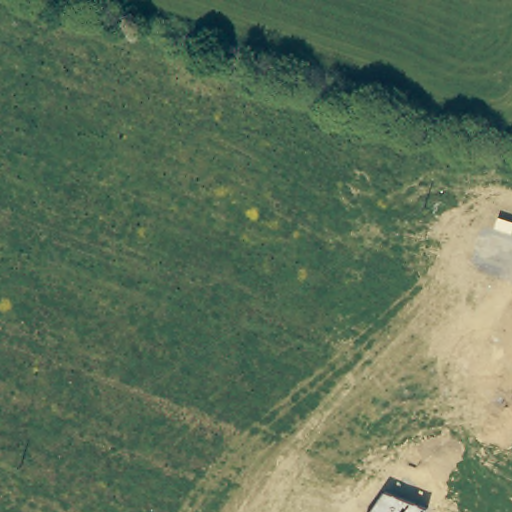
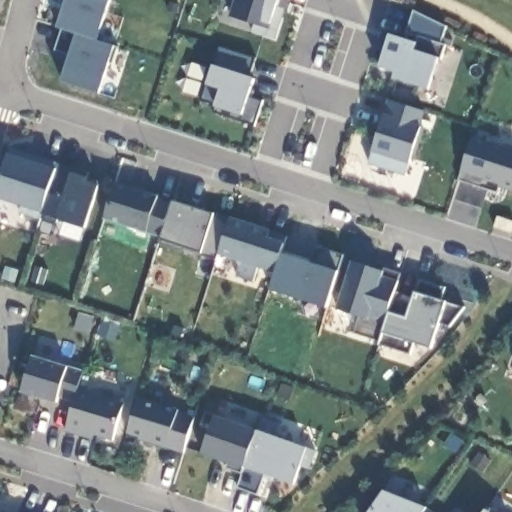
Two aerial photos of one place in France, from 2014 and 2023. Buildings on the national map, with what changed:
new [(98,41),(115,47),(100,94),(62,81),(70,54),(55,50),(63,29),(59,27),(68,0),(111,0),(110,2),(98,41)]
new [(286,10),(276,40),(252,33),(251,22),(230,16),(235,0),(279,0),(277,6),(286,10)]
new [(447,28),(441,44),(445,45),(440,58),(430,90),(393,79),(395,72),(380,68),(392,35),(405,40),(415,11),(447,28)]
new [(255,80),(249,96),(263,102),(255,125),(215,113),(217,106),(202,101),(209,85),(215,65),(221,49),(255,59),(255,80)]
new [(390,100),(425,111),(420,126),(425,128),(415,160),(412,159),(406,175),(370,164),(390,100)]
new [(473,136),(512,149),(512,191),(501,187),(499,194),(459,180),(473,136)]
new [(44,218),(42,221),(21,215),(24,206),(0,199),(0,187),(12,149),(34,156),(31,162),(41,165),(43,159),(61,165),(45,213),(44,218)]
new [(85,229),(60,221),(56,224),(44,218),(45,213),(61,165),(89,175),(86,182),(99,185),(85,229)]
new [(117,184),(175,201),(214,215),(231,219),(272,231),(270,238),(285,244),(276,273),(258,268),(254,281),(237,276),(241,262),(219,255),(215,258),(161,244),(164,239),(147,232),(104,220),(117,184)]
new [(276,273),(282,253),(311,263),(317,246),(345,255),(328,307),(270,290),(276,273)]
new [(450,326),(440,322),(431,347),(417,343),(412,355),(380,345),(381,341),(379,340),(356,333),(361,316),(338,308),(353,262),(385,272),(384,276),(399,281),(396,292),(415,298),(417,293),(421,282),(443,288),(438,301),(445,303),(462,310),(450,326)]
new [(68,367),(69,365),(83,371),(78,388),(124,402),(112,440),(94,435),(94,440),(65,432),(75,401),(59,397),(57,403),(20,392),(31,355),(68,367)]
new [(182,453),(166,448),(139,440),(140,437),(128,433),(138,397),(179,410),(177,412),(195,416),(182,453)]
unchanged [(266,473),(258,495),(240,488),(245,468),(203,455),(216,416),(258,430),(263,420),(280,425),(273,435),(308,449),(317,452),(310,468),(302,465),(295,484),(266,473)]
unchanged [(424,512),(371,512),(385,492),(425,510),(424,512)]
new [(11,512),(7,512),(7,510),(11,512)]
new [(425,510),(430,512),(424,512),(425,510)]
new [(485,510),(489,512),(484,512),(485,510)]

